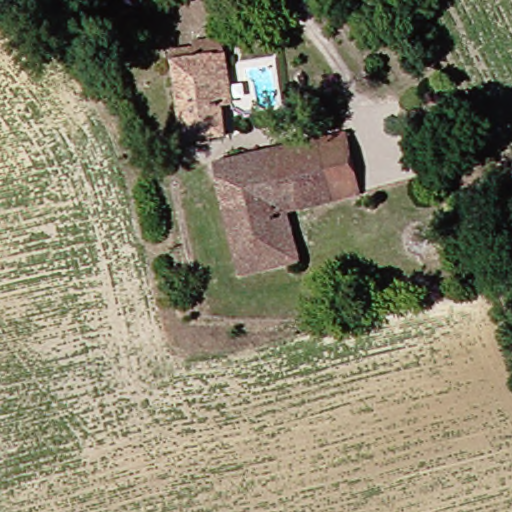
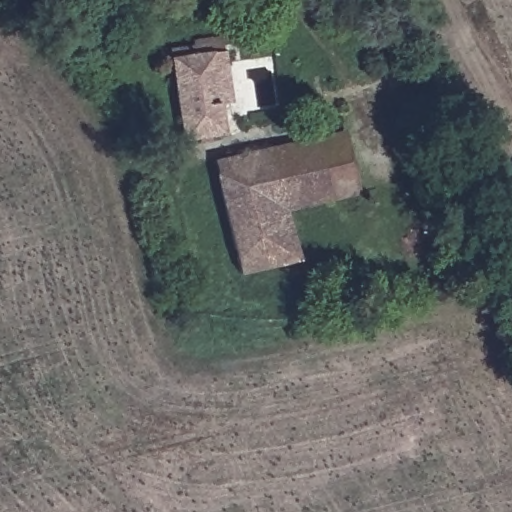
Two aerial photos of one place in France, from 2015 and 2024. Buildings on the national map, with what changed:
unchanged [(233,61),(222,63),(233,128),(193,134),(178,53),(230,47),(233,61)]
unchanged [(356,134),(368,196),(341,201),(328,140),(356,134)]
unchanged [(298,211),(308,264),(249,277),(225,163),(328,140),(341,201),(298,211)]

